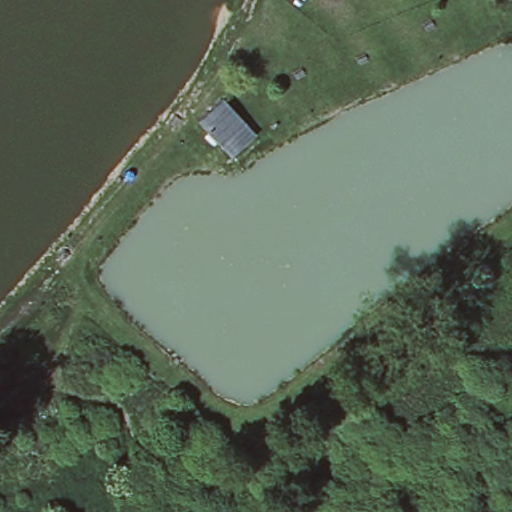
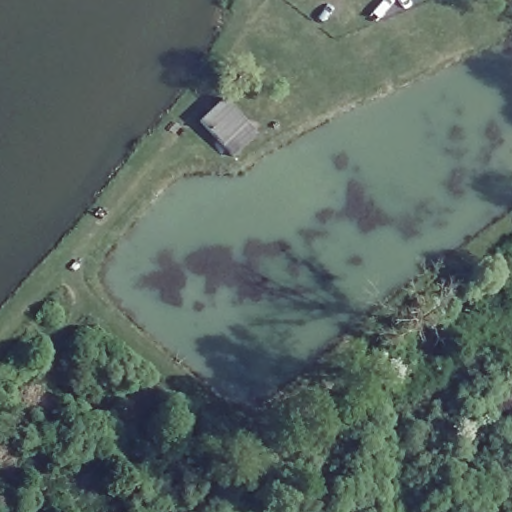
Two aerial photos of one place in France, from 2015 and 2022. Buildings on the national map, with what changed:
unchanged [(235,106),(256,129),(253,132),(230,154),(200,120),(225,96),(235,106)]

